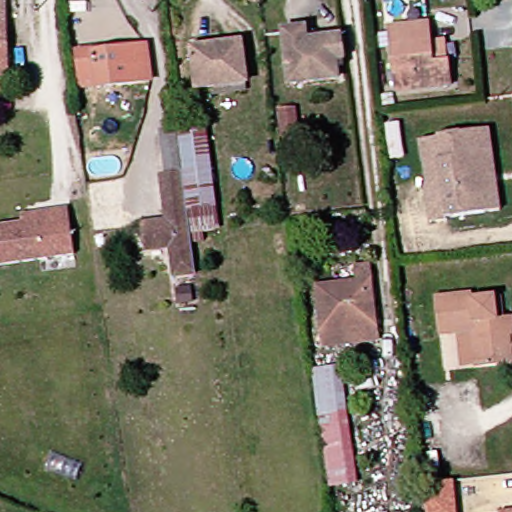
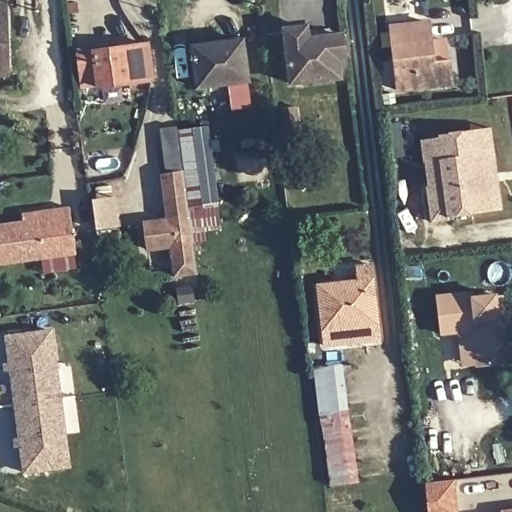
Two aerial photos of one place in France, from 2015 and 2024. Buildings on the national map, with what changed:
unchanged [(0,78),(0,4),(12,4),(14,64),(15,78),(0,78)]
unchanged [(403,91),(396,28),(435,24),(437,44),(453,42),(455,62),(457,86),(403,91)]
unchanged [(338,61),(340,78),(292,84),(286,30),(307,27),(308,39),(342,35),(345,60),(338,61)]
unchanged [(197,88),(192,48),(243,42),(248,82),(197,88)]
unchanged [(111,51),(149,47),(152,82),(99,88),(98,87),(82,89),(78,51),(111,47),(111,51)]
unchanged [(283,137),(280,110),(298,108),(301,136),(283,137)]
unchanged [(448,212),(449,215),(431,217),(427,181),(444,180),(441,156),(426,157),(424,135),(442,132),(442,130),(475,127),(493,125),(496,154),(498,168),(499,177),(500,190),(501,207),(486,209),(448,212)]
unchanged [(148,228),(171,226),(165,180),(172,179),(167,135),(184,132),(202,277),(178,280),(174,250),(151,253),(148,228)]
unchanged [(215,132),(225,207),(199,211),(189,136),(215,132)]
new [(115,199),(119,229),(96,232),(92,202),(115,199)]
unchanged [(26,222),(37,212),(68,208),(75,255),(0,266),(0,226),(26,222)]
unchanged [(330,346),(323,287),(364,282),(363,268),(376,267),(384,340),(330,346)]
unchanged [(512,357),(512,365),(473,369),(468,332),(439,335),(434,297),(472,293),(473,301),(494,298),(502,297),(504,320),(512,319),(512,330),(508,331),(512,357)]
new [(21,473),(18,447),(12,447),(12,438),(16,437),(7,372),(3,372),(2,364),(6,363),(3,335),(51,328),(70,468),(21,473)]
unchanged [(319,368),(348,367),(362,484),(334,487),(319,368)]
unchanged [(436,477),(467,474),(471,512),(441,512),(436,477)]

